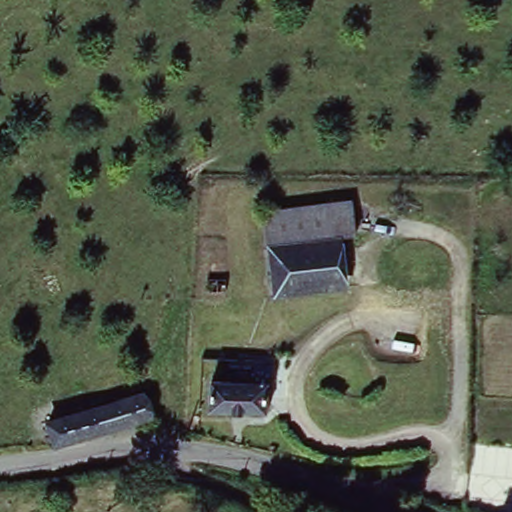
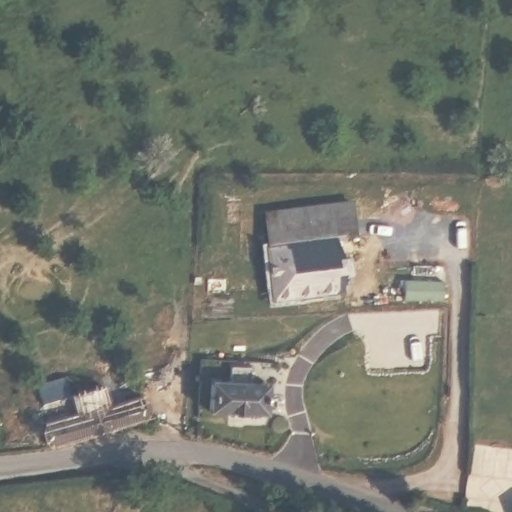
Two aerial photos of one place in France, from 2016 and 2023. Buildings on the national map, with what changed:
unchanged [(349,200),(354,236),(334,239),(339,287),(275,295),(265,211),(349,200)]
unchanged [(225,277),(225,292),(206,290),(206,277),(225,277)]
unchanged [(267,366),(266,375),(259,374),(261,366),(267,366)]
unchanged [(215,385),(234,386),(234,370),(255,371),(254,387),(272,387),(271,418),(213,415),(215,385)]
unchanged [(56,421),(152,394),(159,417),(63,445),(62,442),(56,421)]

